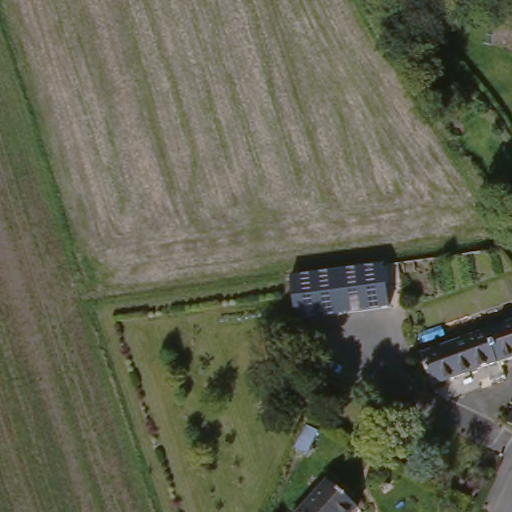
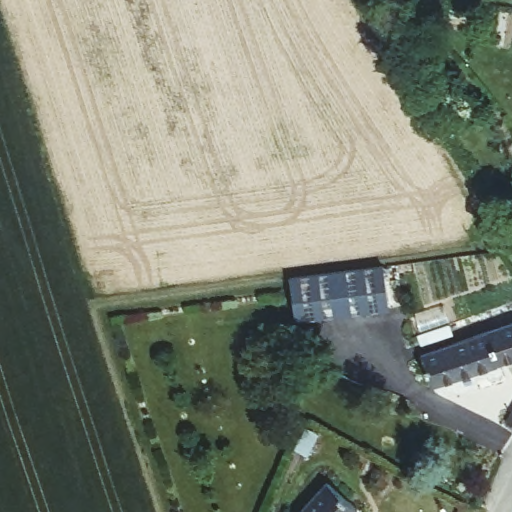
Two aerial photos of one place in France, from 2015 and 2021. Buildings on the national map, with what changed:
unchanged [(388,310),(304,322),(300,283),(339,278),(384,272),(388,310)]
unchanged [(512,313),(512,324),(509,315),(512,313)]
unchanged [(429,376),(422,353),(512,324),(512,356),(436,381),(429,376)]
unchanged [(512,398),(512,437),(494,427),(512,398)]
unchanged [(330,477),(356,504),(349,512),(298,512),(330,477)]

